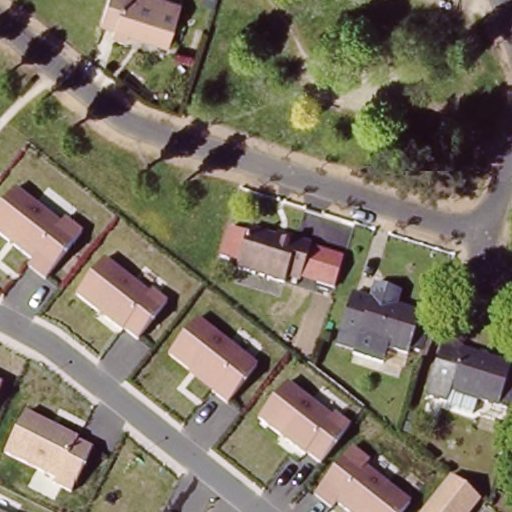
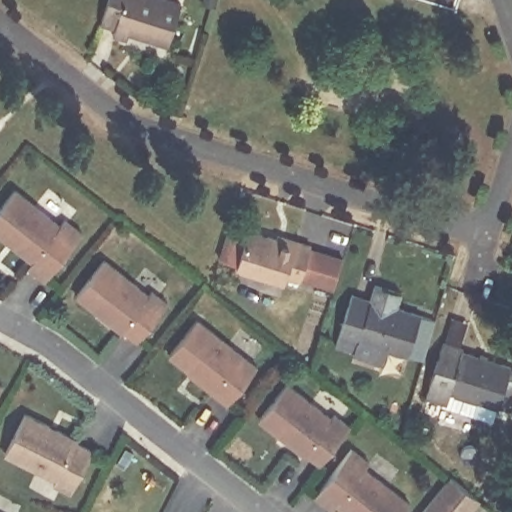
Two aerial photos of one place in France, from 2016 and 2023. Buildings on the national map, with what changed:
unchanged [(178,5),(164,43),(132,31),(130,38),(115,32),(116,28),(101,22),(109,0),(163,0),(178,5)]
unchanged [(30,265),(34,260),(0,233),(0,209),(18,186),(62,220),(67,216),(83,229),(46,278),(30,265)]
unchanged [(296,252),(298,246),(312,251),(300,285),(288,281),(286,289),(240,273),(251,237),(296,252)]
unchanged [(77,292),(105,258),(150,293),(153,288),(169,300),(137,338),(77,292)]
unchanged [(417,318),(405,356),(359,341),(354,356),(332,349),(350,295),(417,318)]
unchanged [(170,355),(200,318),(259,364),(230,402),(170,355)]
unchanged [(510,365),(495,402),(452,386),(447,399),(429,392),(446,341),(510,365)]
unchanged [(0,387),(0,380),(2,381),(0,387)]
unchanged [(260,418),(290,382),(332,415),(336,411),(352,424),(321,463),(260,418)]
unchanged [(55,482),(56,477),(6,451),(27,412),(95,445),(72,492),(55,482)]
unchanged [(335,505),(319,493),(355,447),(371,458),(367,463),(413,500),(405,512),(354,512),(339,500),(335,505)]
unchanged [(422,512),(450,474),(484,501),(475,512),(422,512)]
unchanged [(2,512),(0,512),(0,511),(2,512)]

